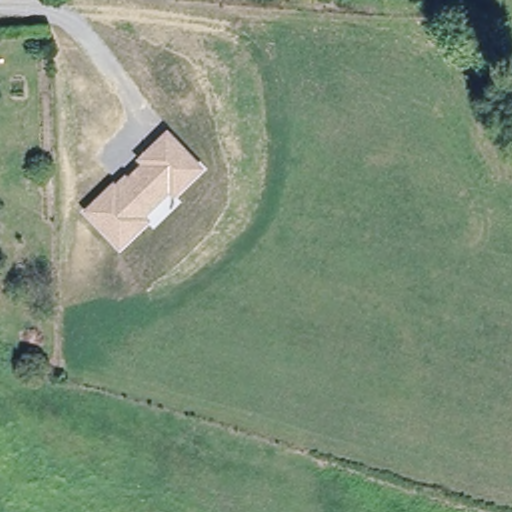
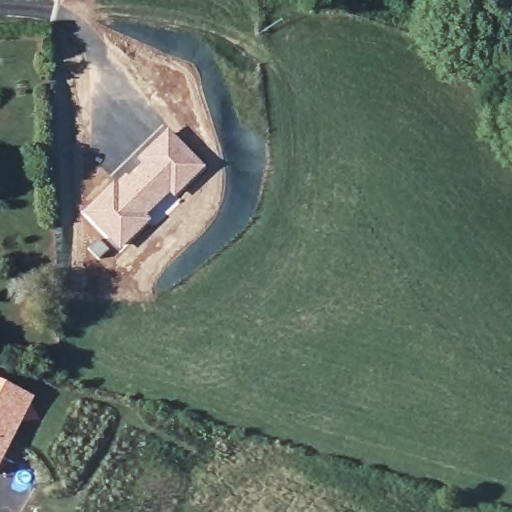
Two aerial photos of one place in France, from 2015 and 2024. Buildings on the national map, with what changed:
unchanged [(126,174),(127,177),(141,164),(136,159),(168,129),(205,169),(176,197),(171,194),(147,215),(151,220),(120,249),(84,211),(115,182),(116,184),(126,174)]
new [(0,466),(0,381),(35,397),(0,466)]

